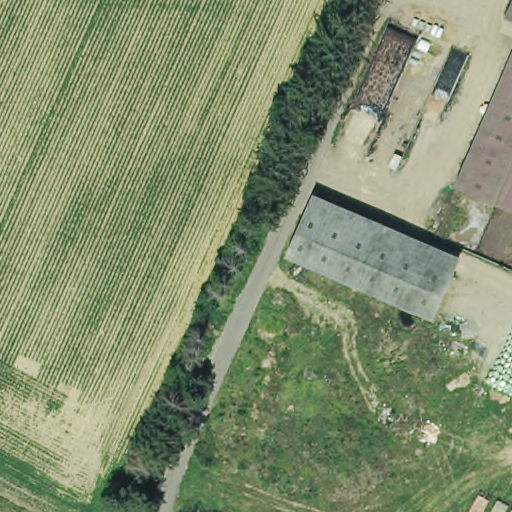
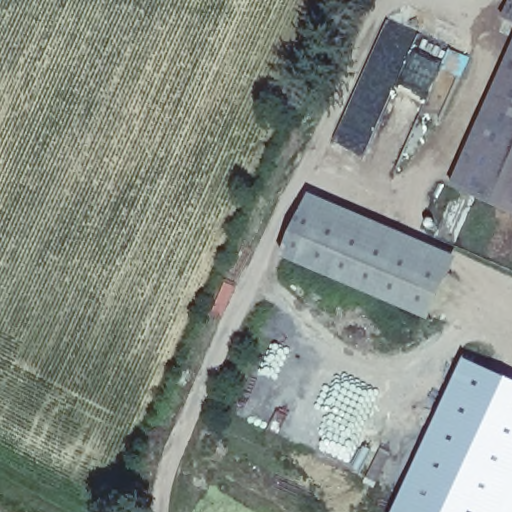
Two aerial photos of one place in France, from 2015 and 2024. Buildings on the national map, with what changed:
unchanged [(512,54),(512,201),(458,178),(512,54)]
unchanged [(311,193),(460,256),(426,318),(285,253),(311,193)]
new [(512,512),(408,512),(471,362),(512,379),(512,512)]

